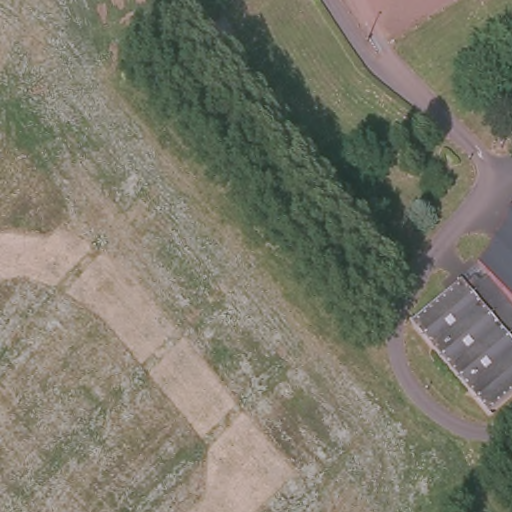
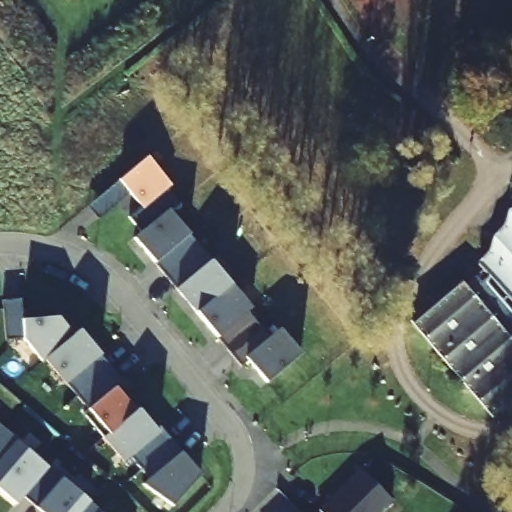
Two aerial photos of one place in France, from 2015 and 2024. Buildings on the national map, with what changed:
new [(194,314),(164,278),(188,258),(177,245),(153,265),(132,239),(139,234),(127,219),(140,209),(117,182),(145,159),(168,186),(164,190),(176,205),(166,212),(229,286),(194,314)]
unchanged [(486,275),(493,269),(484,261),(512,214),(512,302),(486,275)]
unchanged [(512,302),(512,386),(489,406),(418,317),(480,268),(486,275),(512,302)]
new [(265,384),(246,363),(240,369),(194,314),(229,286),(248,309),(245,313),(269,340),(279,331),(299,355),(265,384)]
new [(22,300),(24,320),(56,319),(72,340),(45,361),(42,364),(23,341),(5,342),(5,302),(22,300)]
new [(79,334),(122,386),(115,392),(134,413),(102,440),(82,416),(87,411),(45,361),(72,340),(79,334)]
new [(138,410),(155,431),(159,428),(198,476),(169,509),(141,488),(147,482),(128,458),(121,463),(102,440),(134,413),(138,410)]
new [(50,467),(18,505),(0,489),(0,423),(50,467)]
new [(323,512),(320,508),(360,467),(393,500),(380,512),(323,512)]
new [(37,512),(36,511),(62,478),(102,512),(37,512)]

